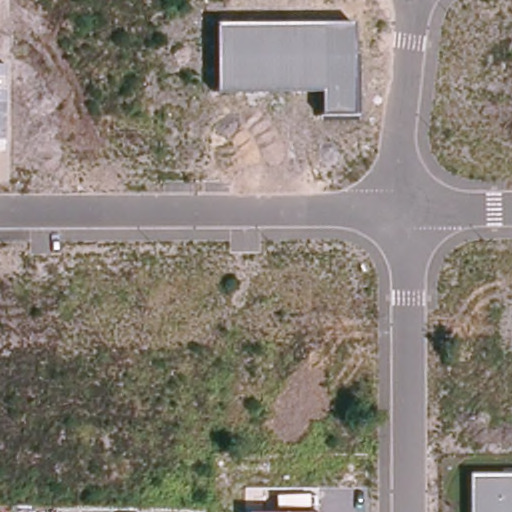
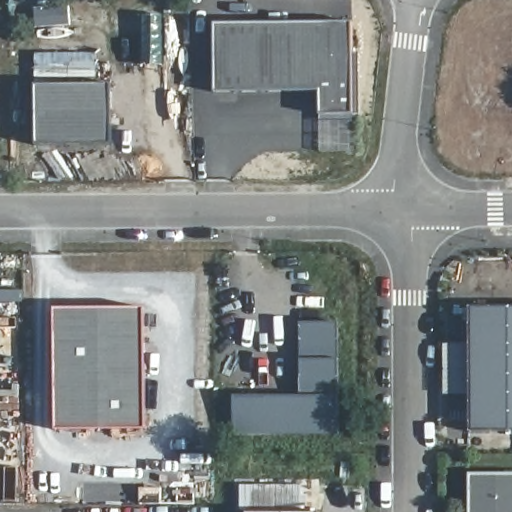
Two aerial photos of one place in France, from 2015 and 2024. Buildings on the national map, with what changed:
unchanged [(213,92),(213,24),(351,23),(353,114),(319,114),(319,91),(213,92)]
new [(112,85),(113,146),(36,147),(35,86),(112,85)]
new [(469,305),(512,305),(512,431),(470,431),(469,305)]
new [(56,429),(54,308),(145,307),(147,429),(56,429)]
new [(232,434),(232,396),(301,396),(301,322),(339,322),(338,434),(232,434)]
unchanged [(469,474),(512,474),(512,512),(469,512),(469,474)]

